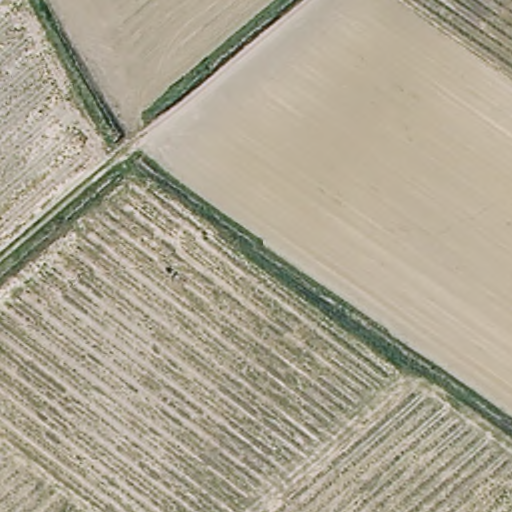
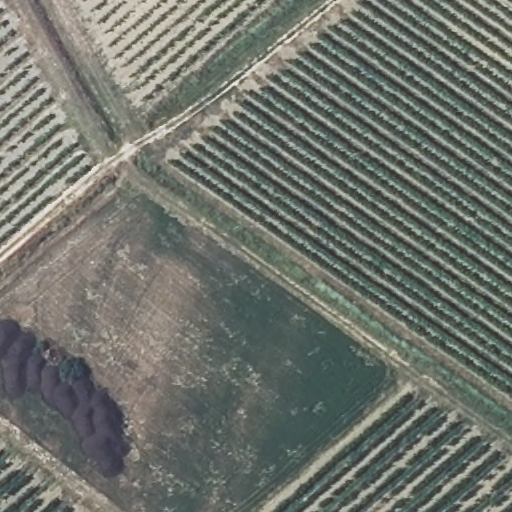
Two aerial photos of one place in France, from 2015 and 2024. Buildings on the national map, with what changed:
[]

